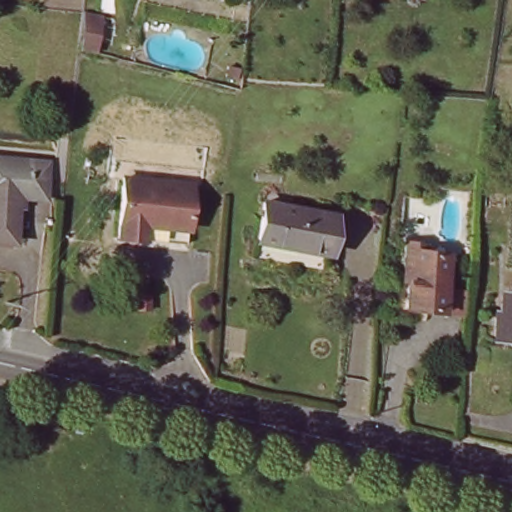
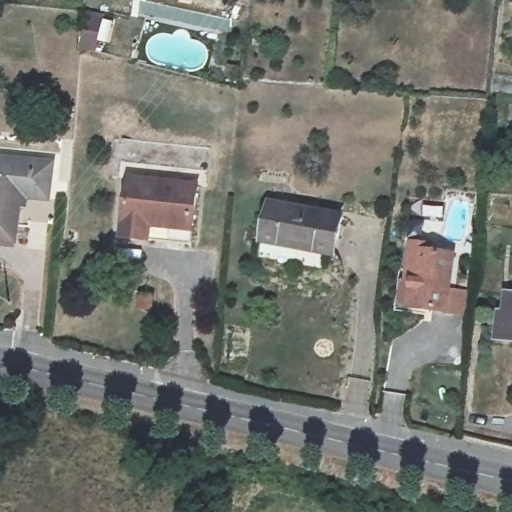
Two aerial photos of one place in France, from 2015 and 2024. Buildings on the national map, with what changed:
unchanged [(73,21),(95,25),(91,63),(70,57),(73,21)]
unchanged [(49,166),(44,203),(24,201),(20,245),(0,242),(0,161),(28,164),(49,166)]
unchanged [(148,240),(121,235),(127,179),(195,184),(188,230),(188,245),(148,240)]
unchanged [(270,203),(313,209),(344,212),(339,252),(309,249),(264,242),(270,203)]
unchanged [(467,288),(465,311),(460,310),(444,308),(404,303),(406,286),(407,278),(410,278),(411,275),(412,271),(405,271),(408,247),(425,250),(452,252),(447,286),(462,288),(467,288)]
unchanged [(509,292),(512,292),(512,336),(505,335),(509,292)]
unchanged [(128,300),(143,300),(141,315),(128,313),(128,300)]

